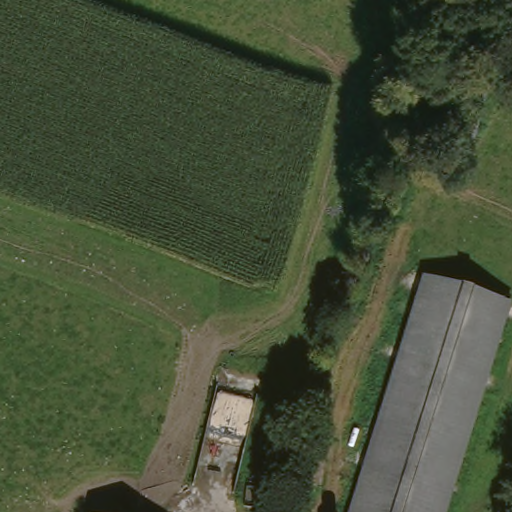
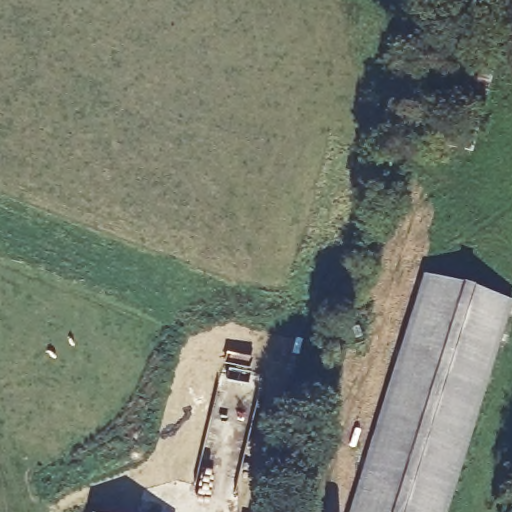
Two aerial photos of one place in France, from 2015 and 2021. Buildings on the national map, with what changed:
unchanged [(485,130),(460,125),(473,61),(497,69),(485,130)]
unchanged [(420,277),(512,306),(512,308),(449,512),(347,512),(420,277)]

